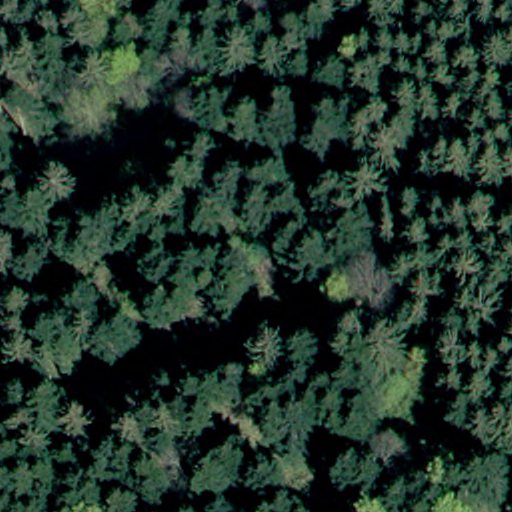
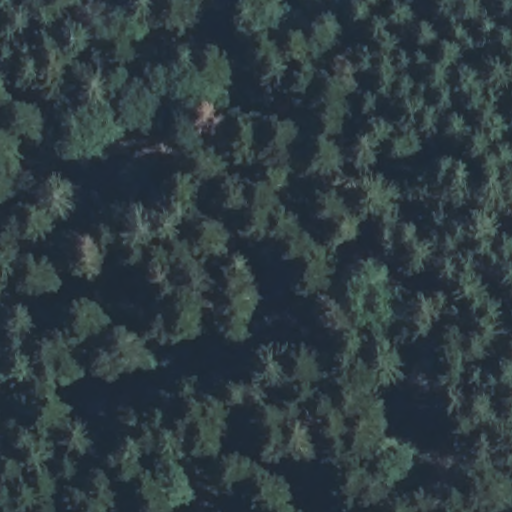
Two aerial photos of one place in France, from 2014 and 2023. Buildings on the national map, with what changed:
[]

